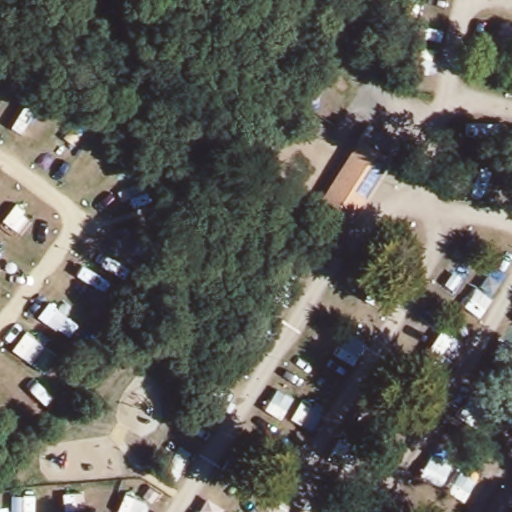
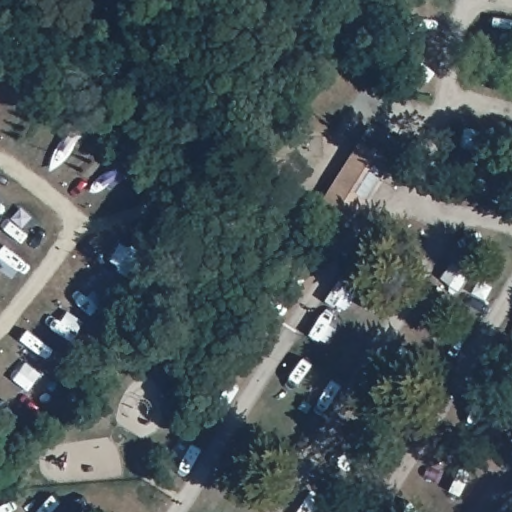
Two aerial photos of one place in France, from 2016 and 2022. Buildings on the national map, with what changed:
unchanged [(329,200),(363,146),(373,131),(396,145),(386,160),(353,216),(329,200)]
unchanged [(316,234),(310,230),(326,205),(332,209),(316,234)]

